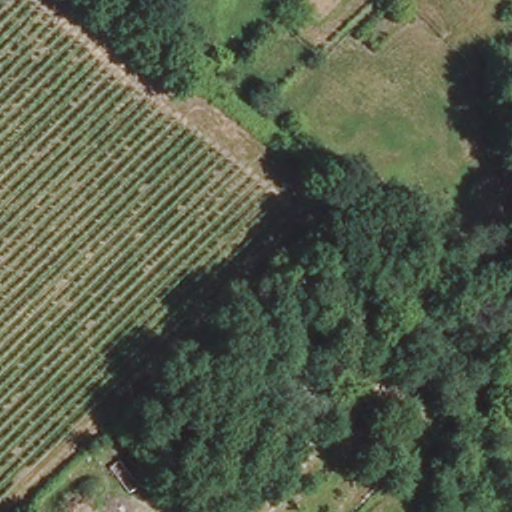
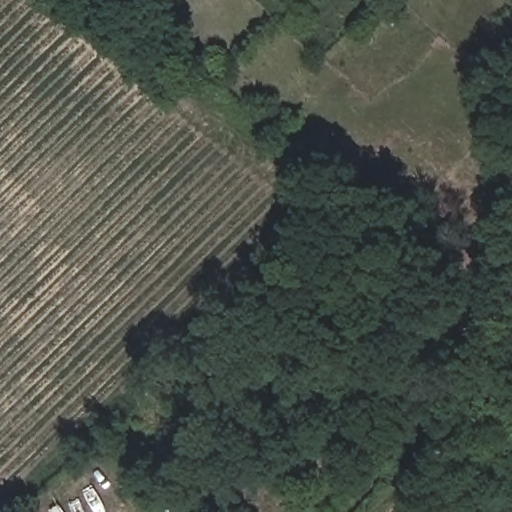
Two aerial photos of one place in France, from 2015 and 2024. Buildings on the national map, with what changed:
[]

